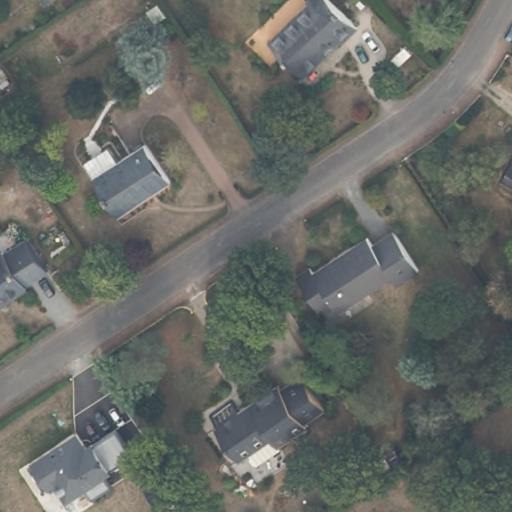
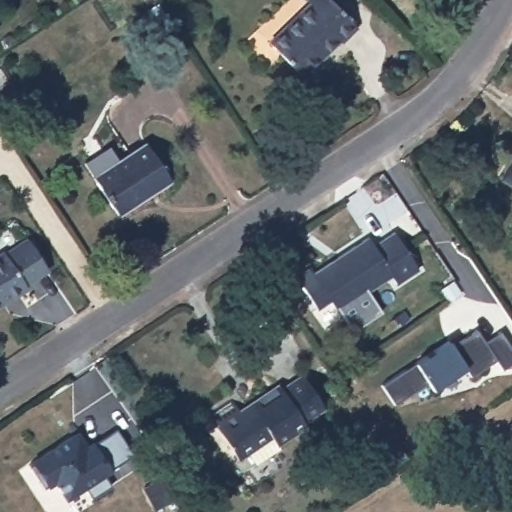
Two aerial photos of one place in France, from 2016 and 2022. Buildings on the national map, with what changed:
unchanged [(159,24),(149,8),(162,0),(172,16),(159,24)]
unchanged [(337,46),(335,44),(299,76),(271,46),(307,11),(303,7),(311,0),(328,0),(355,29),(337,46)]
unchanged [(92,177),(83,164),(109,148),(119,163),(145,146),(169,182),(115,216),(90,179),(92,177)]
unchanged [(512,167),(512,193),(492,180),(505,162),(512,167)]
unchanged [(398,287),(390,279),(318,326),(302,282),(365,238),(368,246),(391,232),(422,274),(398,287)]
unchanged [(2,263),(7,263),(30,248),(49,276),(23,293),(25,295),(0,310),(0,264),(2,263)]
new [(471,376),(466,367),(456,374),(432,390),(427,382),(395,405),(381,385),(415,363),(441,346),(448,340),(452,346),(476,330),(485,342),(500,333),(512,350),(512,363),(501,370),(496,360),(471,376)]
unchanged [(220,424),(212,410),(234,398),(241,411),(281,388),(283,391),(306,378),(326,412),(307,424),(310,429),(280,446),(276,440),(240,461),(217,426),(220,424)]
unchanged [(112,469),(113,471),(105,476),(111,484),(93,497),(86,488),(65,499),(54,483),(45,488),(29,462),(80,432),(90,443),(117,429),(131,454),(112,469)]

